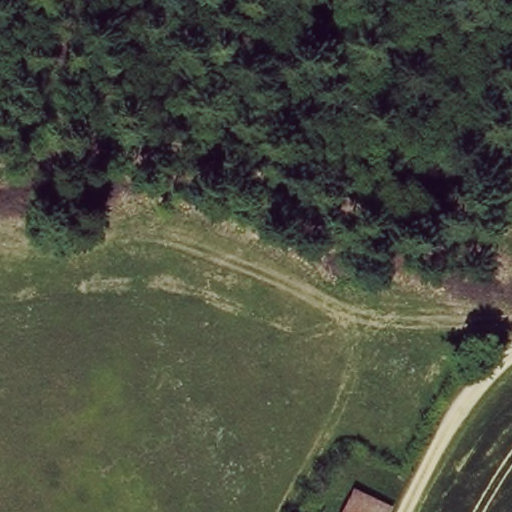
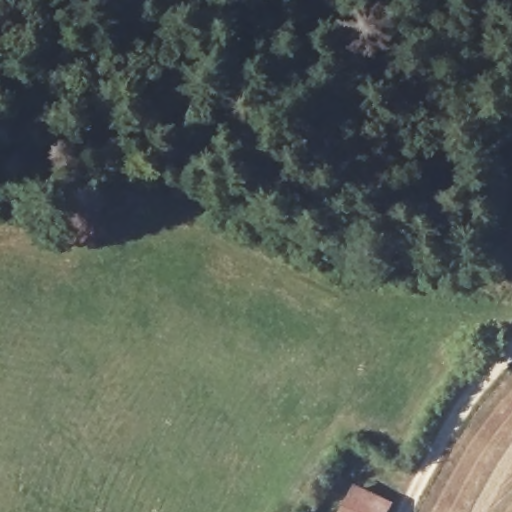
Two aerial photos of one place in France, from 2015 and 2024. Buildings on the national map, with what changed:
unchanged [(382,512),(346,512),(355,491),(386,506),(382,512)]

